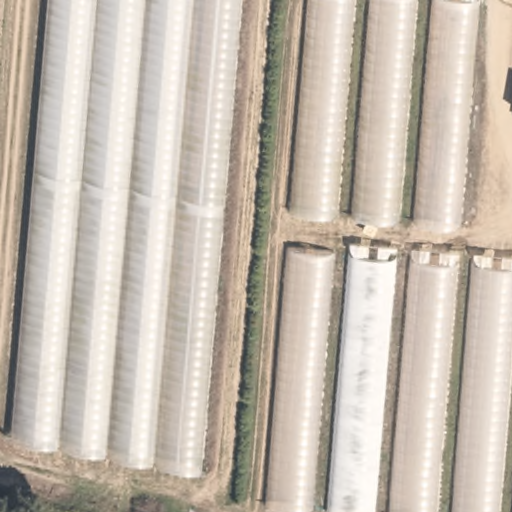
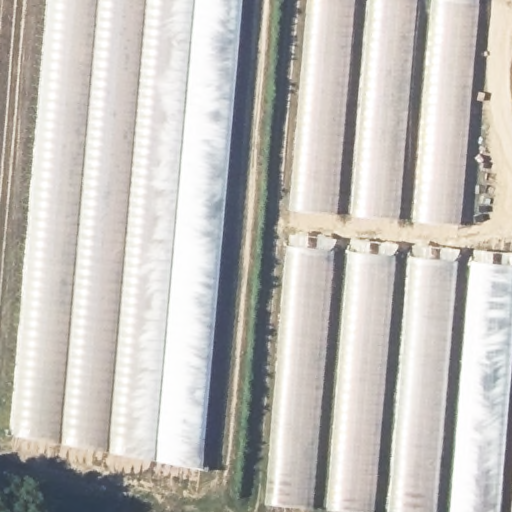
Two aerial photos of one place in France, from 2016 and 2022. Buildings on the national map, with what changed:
unchanged [(200,466),(11,436),(48,0),(239,0),(200,466)]

